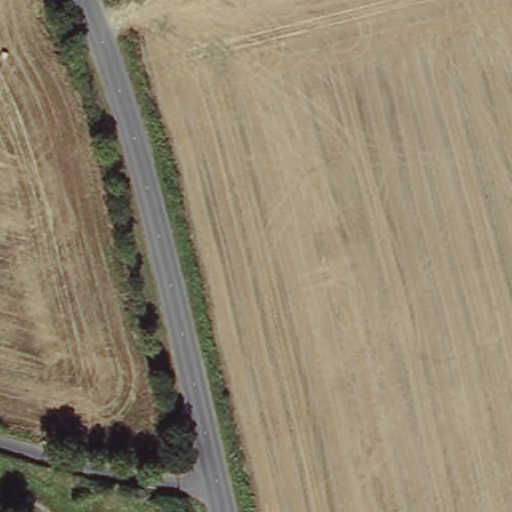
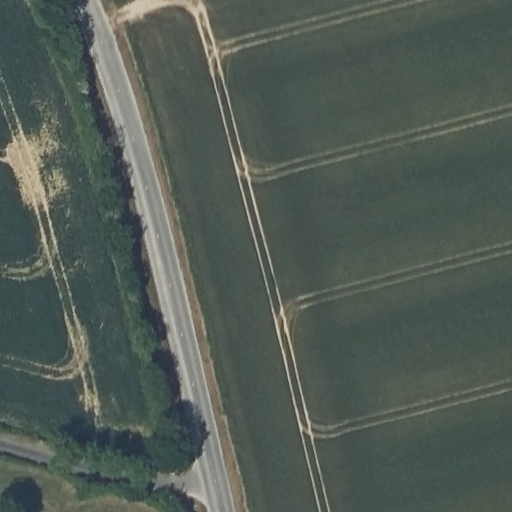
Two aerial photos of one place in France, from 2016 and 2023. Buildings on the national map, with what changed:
[]

